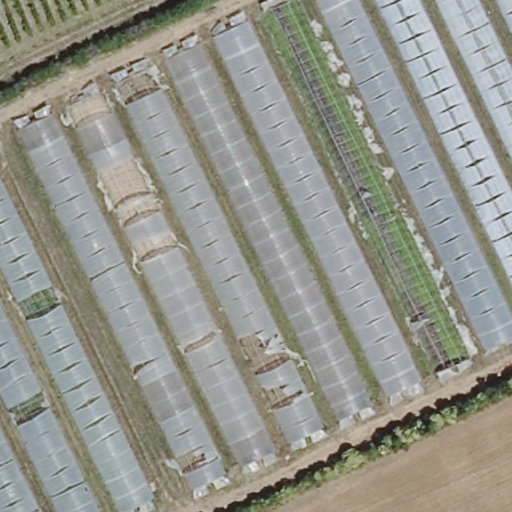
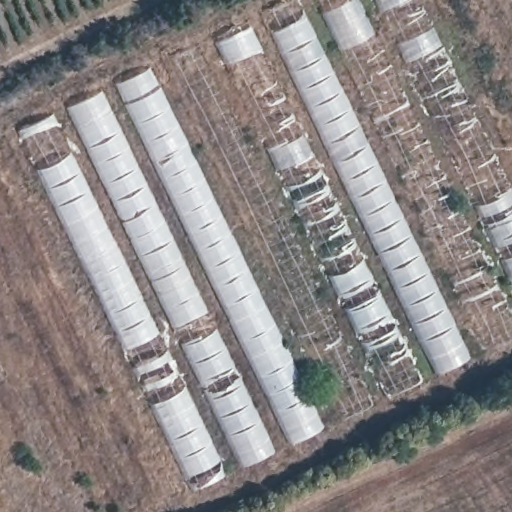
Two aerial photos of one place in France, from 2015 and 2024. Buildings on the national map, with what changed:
unchanged [(12,120),(271,0),(512,0),(512,352),(192,503),(12,120)]
demolished [(151,512),(0,512),(0,180),(159,510),(151,512)]

